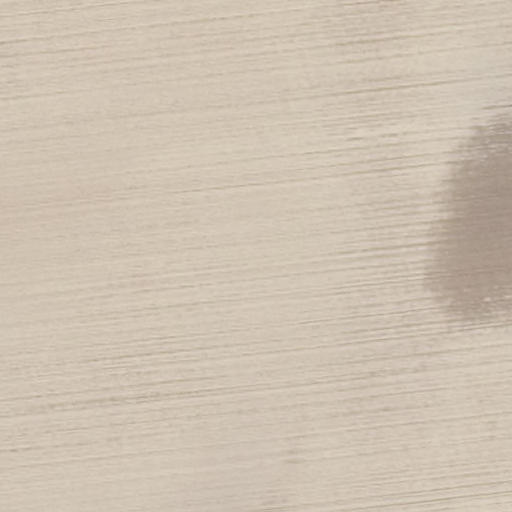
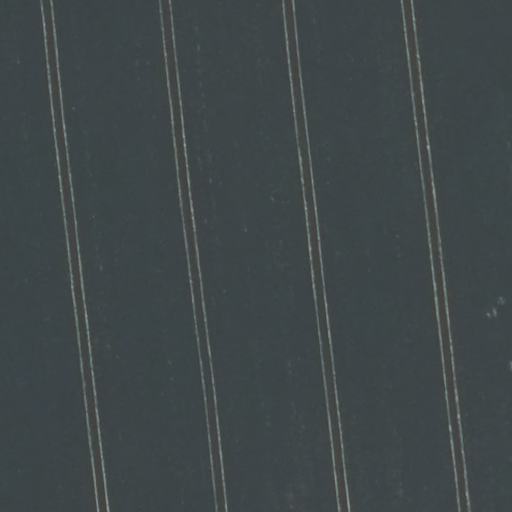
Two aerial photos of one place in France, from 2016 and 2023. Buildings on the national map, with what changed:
[]

